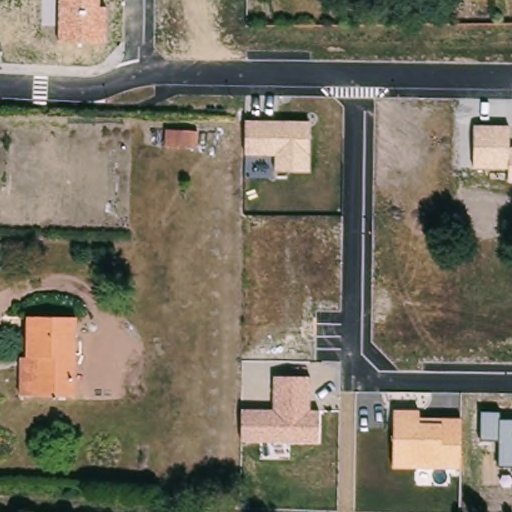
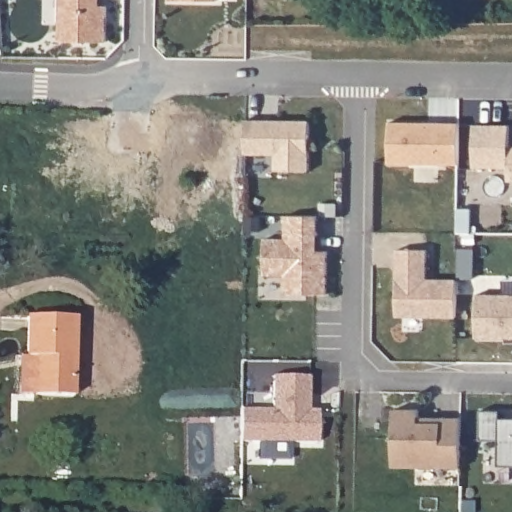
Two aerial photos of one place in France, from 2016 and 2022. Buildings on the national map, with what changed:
unchanged [(100,7),(107,7),(107,43),(58,42),(58,0),(100,0),(100,7)]
new [(217,1),(169,1),(170,0),(217,0),(217,1)]
unchanged [(492,1),(466,0),(492,0),(492,1)]
unchanged [(274,171),(275,156),(245,154),(246,122),(310,123),(309,172),(274,171)]
new [(389,124),(440,125),(440,133),(458,133),(458,166),(388,165),(389,124)]
unchanged [(508,147),(512,147),(512,183),(507,183),(508,169),(473,168),(473,125),(509,125),(508,147)]
new [(285,241),(285,217),(317,218),(317,237),(317,253),(327,253),(326,296),(284,295),(284,277),(263,277),(264,240),(285,241)]
new [(396,252),(426,252),(425,282),(456,282),(455,320),(395,319),(396,252)]
new [(475,297),(512,297),(512,341),(474,341),(475,297)]
unchanged [(16,358),(25,357),(25,316),(69,316),(69,397),(13,396),(16,358)]
unchanged [(310,377),(309,411),(319,411),(318,444),(240,443),(240,409),(272,409),(273,377),(310,377)]
unchanged [(419,410),(420,417),(461,418),(460,468),(393,467),(394,410),(419,410)]
unchanged [(499,412),(499,419),(512,420),(512,466),(498,466),(499,440),(480,440),(480,413),(499,412)]

